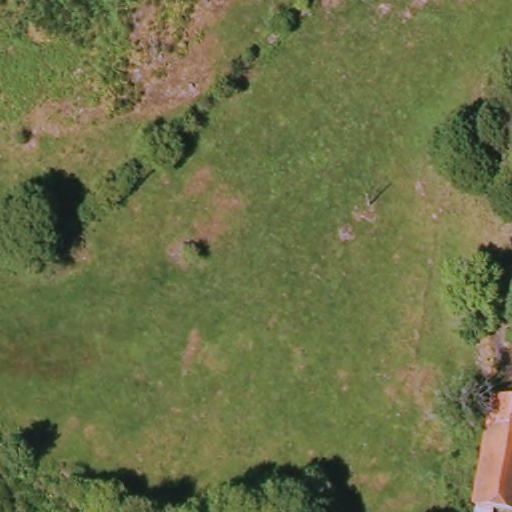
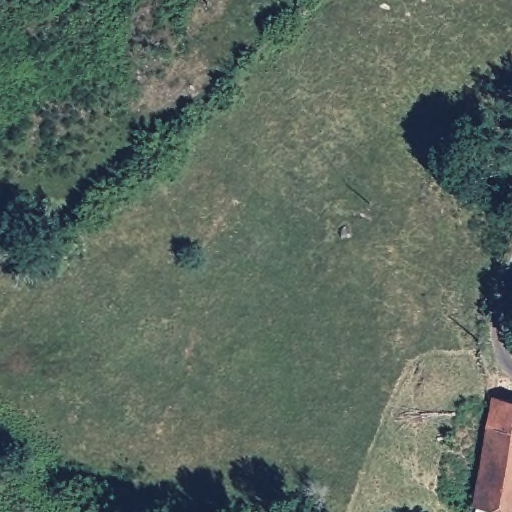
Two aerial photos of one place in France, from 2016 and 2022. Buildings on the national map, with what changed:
unchanged [(512,512),(473,512),(491,398),(512,401),(512,512)]

